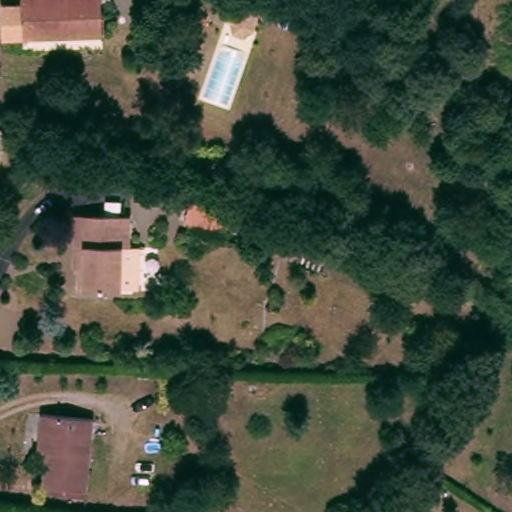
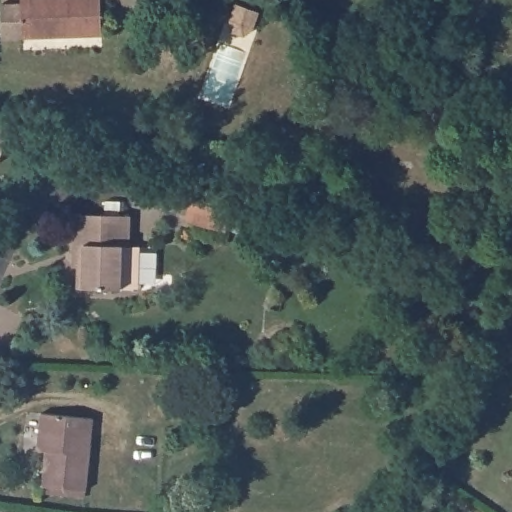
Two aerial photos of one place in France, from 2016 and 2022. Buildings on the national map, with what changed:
unchanged [(19,36),(21,3),(21,0),(101,0),(100,39),(19,36)]
unchanged [(243,41),(231,36),(227,29),(229,24),(234,8),(258,16),(252,33),(251,37),(243,41)]
unchanged [(8,129),(0,165),(0,126),(8,129)]
unchanged [(240,206),(234,223),(192,208),(197,191),(240,206)]
unchanged [(104,213),(106,195),(121,196),(120,213),(131,214),(128,245),(142,246),(138,288),(78,283),(80,265),(70,264),(75,211),(104,213)]
unchanged [(40,498),(41,486),(43,452),(34,451),(37,414),(90,418),(85,489),(84,501),(40,498)]
unchanged [(145,478),(143,495),(117,492),(119,476),(145,478)]

